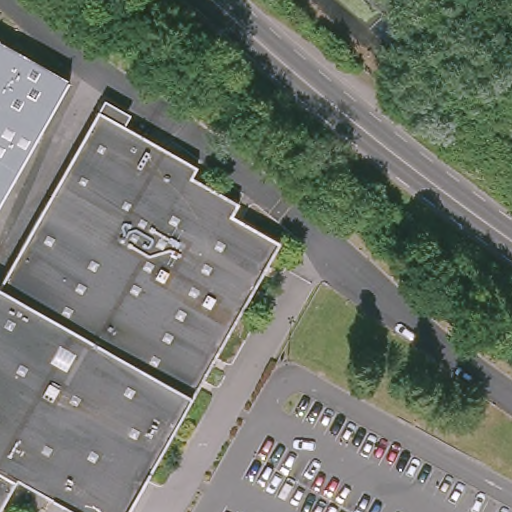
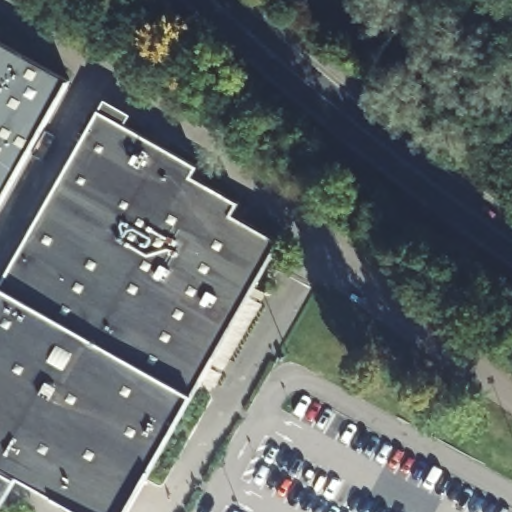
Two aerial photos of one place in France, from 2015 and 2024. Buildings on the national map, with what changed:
unchanged [(63,76),(0,183),(0,41),(63,76)]
unchanged [(9,286),(107,113),(130,126),(167,146),(188,158),(186,164),(183,172),(201,180),(229,193),(225,203),(222,207),(237,215),(292,244),(283,260),(276,271),(152,482),(138,473),(123,512),(85,512),(65,500),(61,506),(16,479),(0,506),(0,281),(9,286)]

